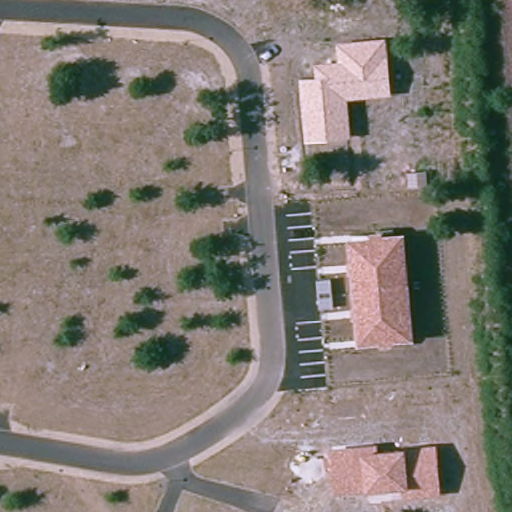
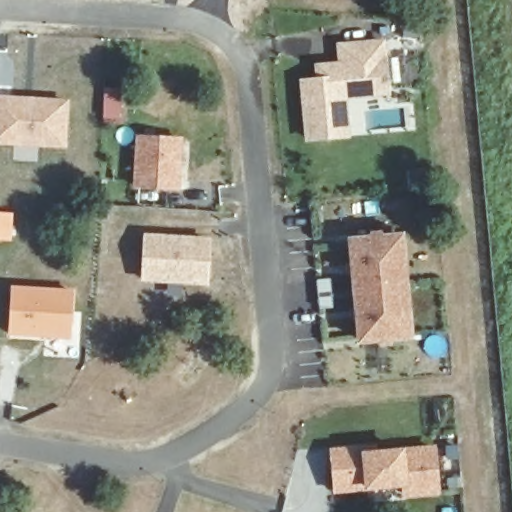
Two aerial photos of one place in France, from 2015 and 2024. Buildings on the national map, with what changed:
unchanged [(297,79),(316,77),(314,64),(337,61),(336,44),(387,39),(391,95),(347,100),(351,138),(303,142),(297,79)]
new [(64,141),(0,139),(0,95),(67,98),(64,141)]
new [(138,135),(180,138),(177,186),(136,185),(138,135)]
new [(212,238),(209,285),(141,282),(144,232),(212,238)]
unchanged [(347,237),(405,232),(414,340),(356,345),(347,237)]
new [(74,289),(72,339),(8,335),(11,285),(74,289)]
unchanged [(329,448),(377,442),(378,450),(405,448),(437,446),(442,496),(402,499),(402,487),(365,490),(333,494),(329,448)]

